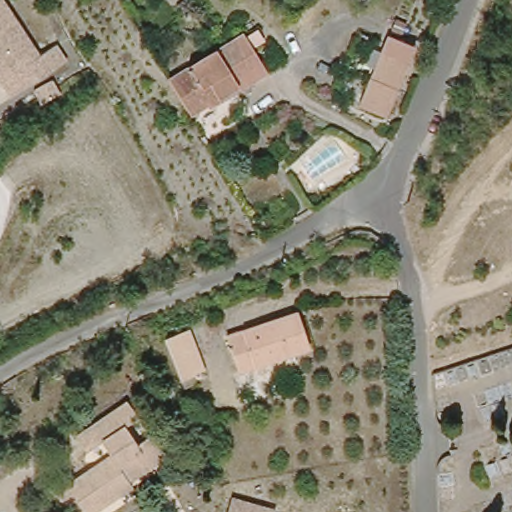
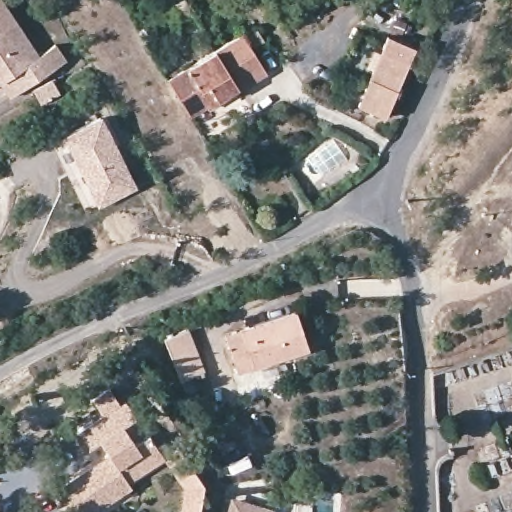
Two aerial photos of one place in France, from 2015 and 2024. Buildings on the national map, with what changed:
unchanged [(1,0),(40,55),(56,45),(64,65),(9,98),(0,87),(0,0),(1,0)]
unchanged [(240,92),(236,86),(212,51),(246,31),(272,70),(240,92)]
unchanged [(363,117),(387,43),(415,51),(392,125),(363,117)]
unchanged [(236,86),(189,115),(167,79),(212,51),(236,86)]
new [(99,207),(63,135),(101,115),(139,190),(99,207)]
unchanged [(303,355),(235,378),(222,340),(291,317),(303,355)]
unchanged [(188,320),(207,358),(184,370),(164,332),(188,320)]
unchanged [(52,511),(42,491),(87,470),(101,462),(93,446),(77,453),(69,436),(127,408),(137,430),(147,452),(155,467),(119,485),(120,492),(106,500),(81,512),(52,512),(52,511)]
unchanged [(227,509),(241,512),(226,512),(227,509)]

